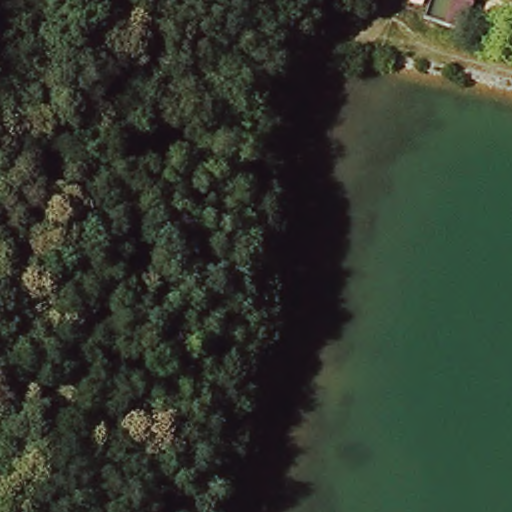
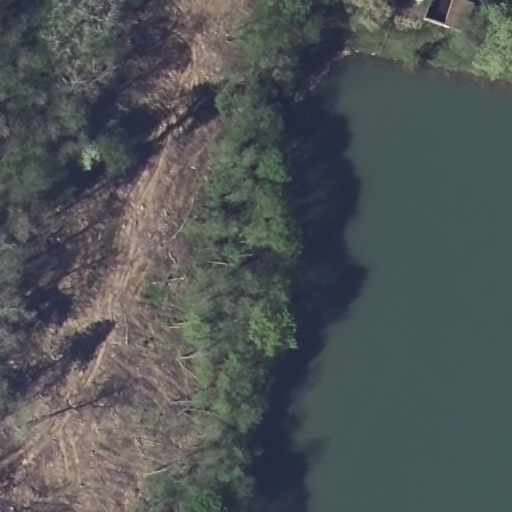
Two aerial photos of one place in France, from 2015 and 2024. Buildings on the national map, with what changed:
unchanged [(469,18),(452,12),(445,29),(423,20),(430,0),(453,0),(473,6),(469,18)]

